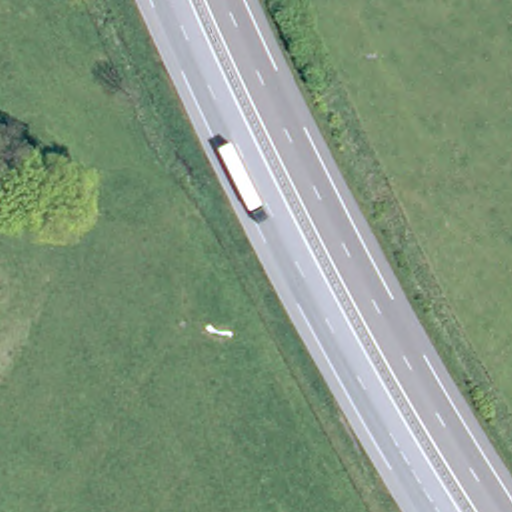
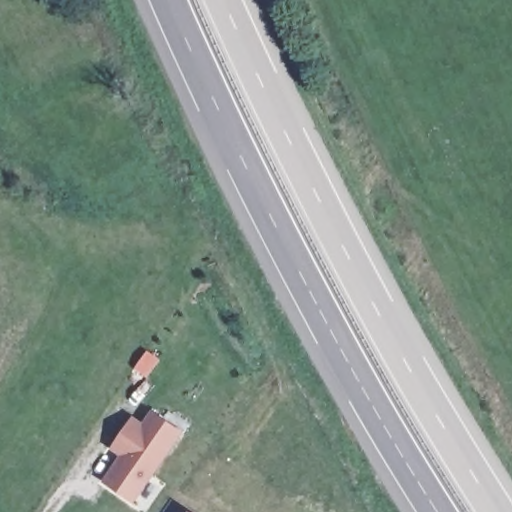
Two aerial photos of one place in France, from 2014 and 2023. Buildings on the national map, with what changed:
new [(143,423),(151,410),(184,432),(135,503),(103,482),(120,456),(111,450),(133,417),(143,423)]

